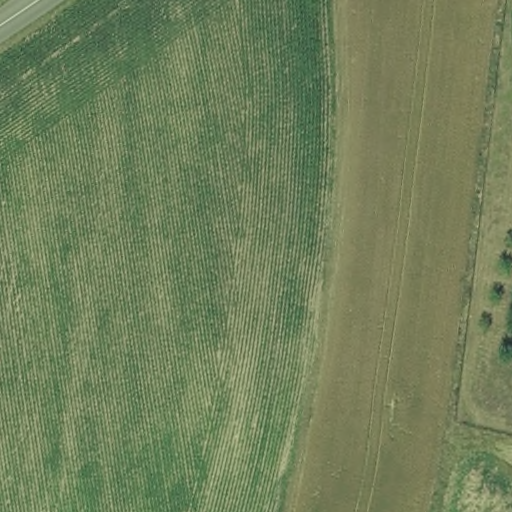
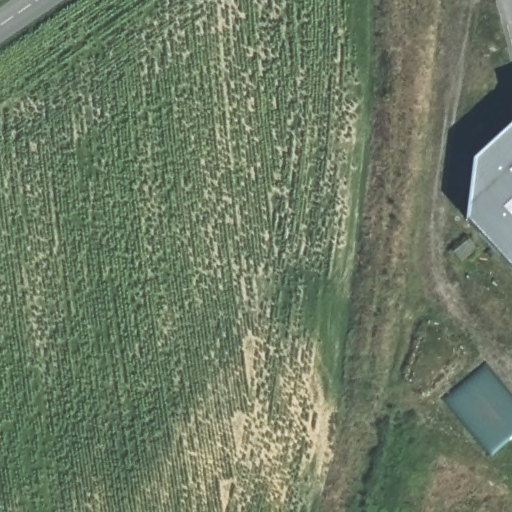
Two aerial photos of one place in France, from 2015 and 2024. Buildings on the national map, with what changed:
new [(469,224),(478,157),(512,125),(512,270),(469,224)]

